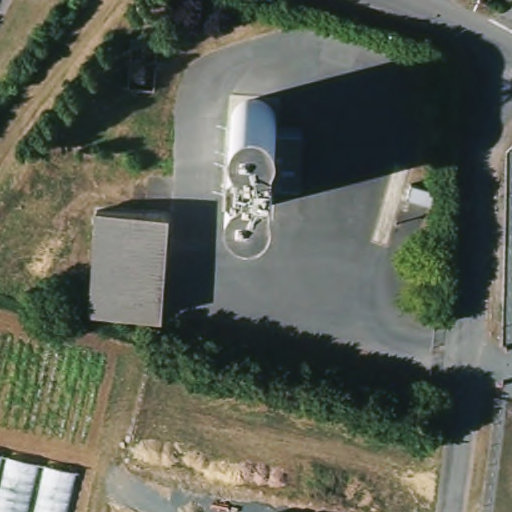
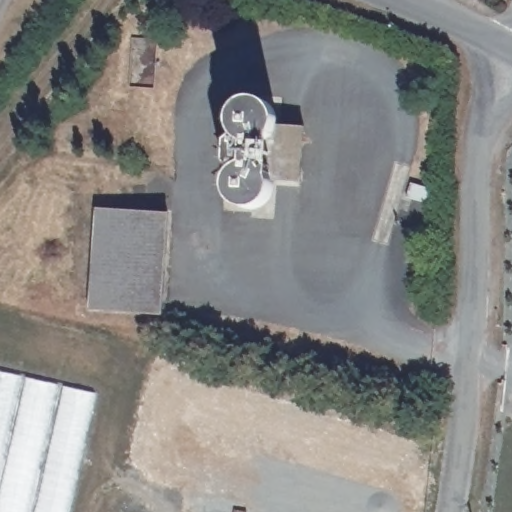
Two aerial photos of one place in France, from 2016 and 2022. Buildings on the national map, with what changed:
unchanged [(237,109),(247,102),(261,101),(271,106),(278,119),(279,129),(281,129),(255,149),(230,148),(232,116),(237,109)]
unchanged [(255,149),(281,129),(284,129),(244,172),(244,209),(242,209),(232,198),(229,187),(230,148),(255,149)]
unchanged [(284,129),(304,130),(302,184),(277,182),(277,193),(276,199),(268,206),(256,212),(244,209),(244,172),(284,129)]
unchanged [(96,206),(166,210),(161,311),(90,308),(96,206)]
new [(0,372),(93,393),(76,471),(0,454),(0,372)]
unchanged [(67,512),(0,512),(0,454),(76,471),(67,512)]

